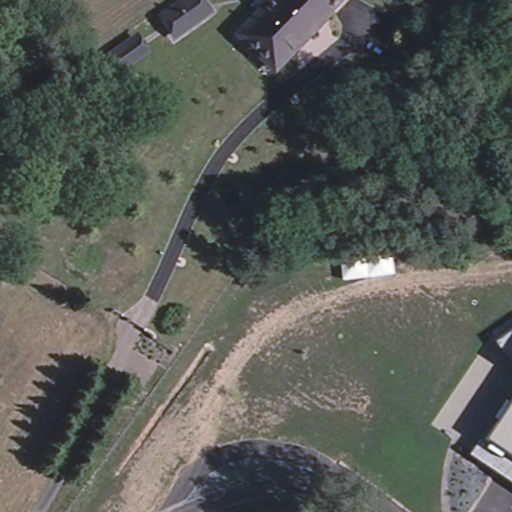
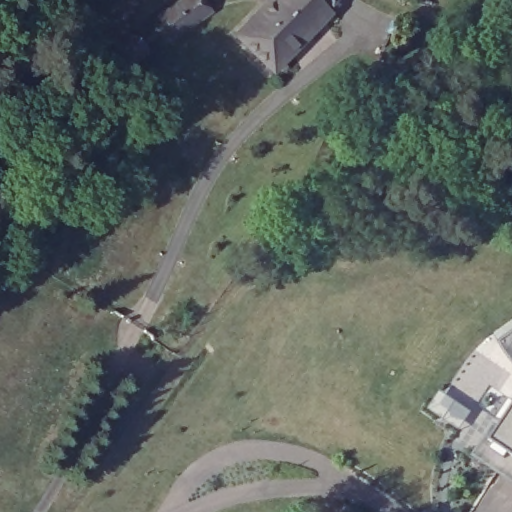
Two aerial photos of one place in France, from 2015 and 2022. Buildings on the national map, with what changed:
unchanged [(152,20),(180,0),(204,0),(212,15),(176,46),(152,20)]
unchanged [(273,72),(237,37),(244,31),(242,29),(256,14),(258,16),(274,0),(312,0),(327,14),(330,16),(273,72)]
unchanged [(312,0),(341,0),(327,14),(312,0)]
unchanged [(512,333),(512,359),(500,342),(512,333)]
unchanged [(492,440),(512,412),(512,481),(475,456),(487,437),(492,440)]

